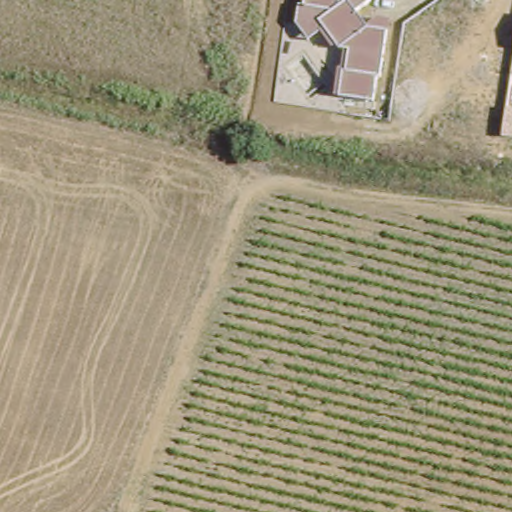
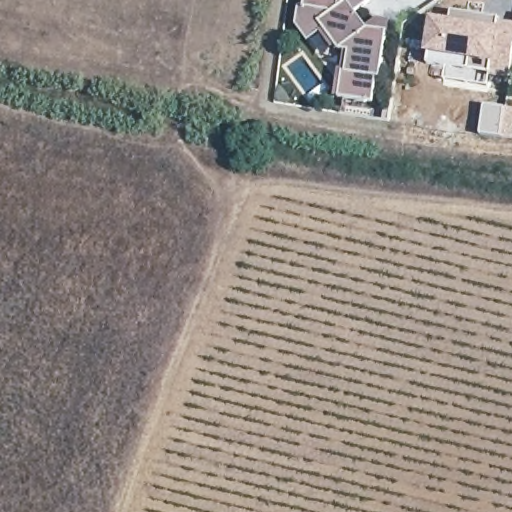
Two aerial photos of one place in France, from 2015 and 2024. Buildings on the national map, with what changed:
unchanged [(339,69),(343,69),(344,49),(341,49),(337,45),(333,49),(321,31),(308,41),(296,25),(299,6),(304,7),(305,0),(371,0),(371,1),(356,11),(367,26),(376,18),(388,21),(387,31),(381,77),(376,77),(374,102),(335,97),(339,69)]
new [(431,17),(451,20),(452,10),(499,17),(498,22),(512,24),(512,65),(510,74),(491,72),(492,67),(424,56),(426,49),(431,17)]

